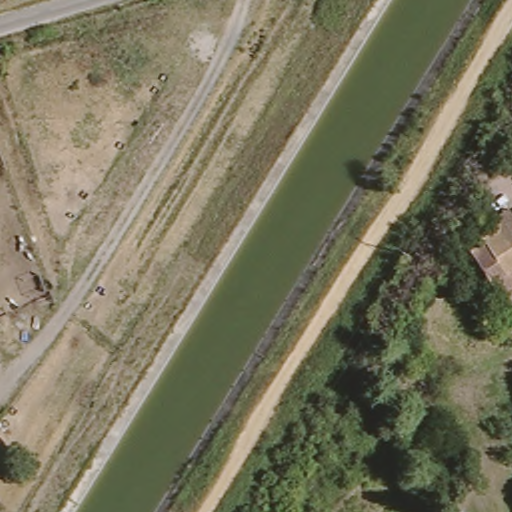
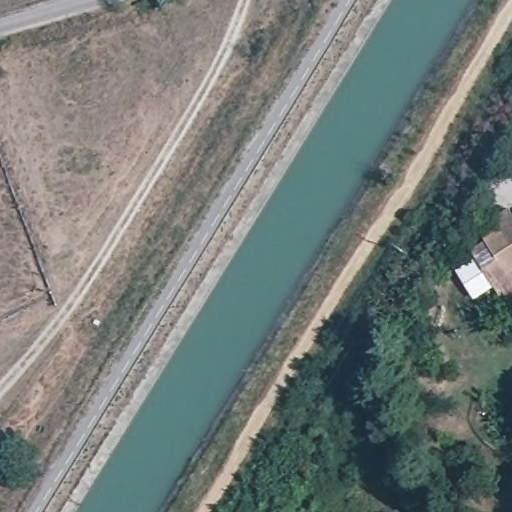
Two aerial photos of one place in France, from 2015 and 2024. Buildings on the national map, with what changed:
unchanged [(506,280),(480,240),(497,230),(489,219),(512,208),(512,210),(512,277),(506,280)]

